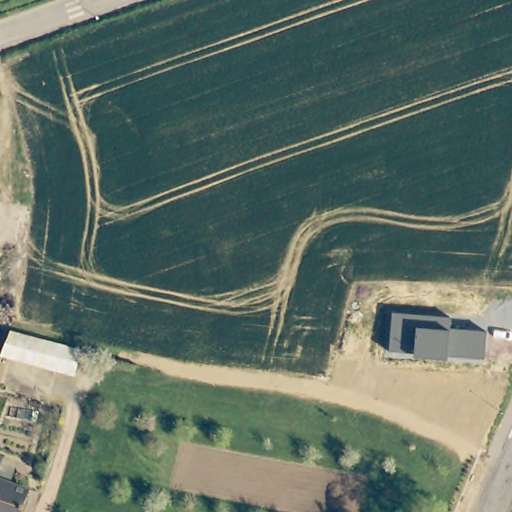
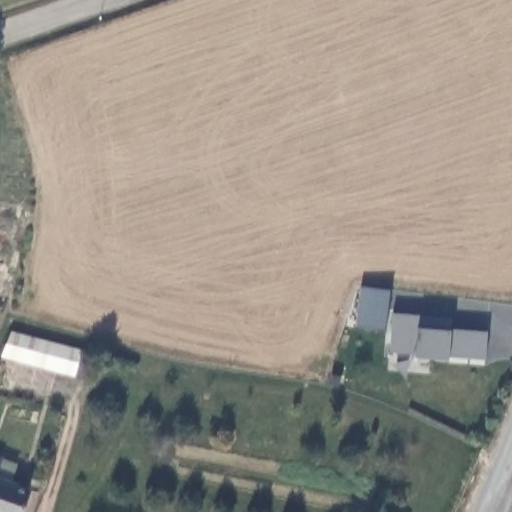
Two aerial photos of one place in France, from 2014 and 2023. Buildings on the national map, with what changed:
new [(360,287),(389,290),(385,330),(357,327),(360,287)]
unchanged [(452,317),(451,328),(487,332),(485,361),(447,358),(447,361),(415,359),(416,355),(388,351),(392,312),(452,317)]
unchanged [(70,378),(0,359),(0,356),(8,335),(77,354),(70,378)]
unchanged [(2,464),(0,469),(0,463),(2,464)]
unchanged [(29,495),(22,512),(0,512),(0,484),(29,495)]

